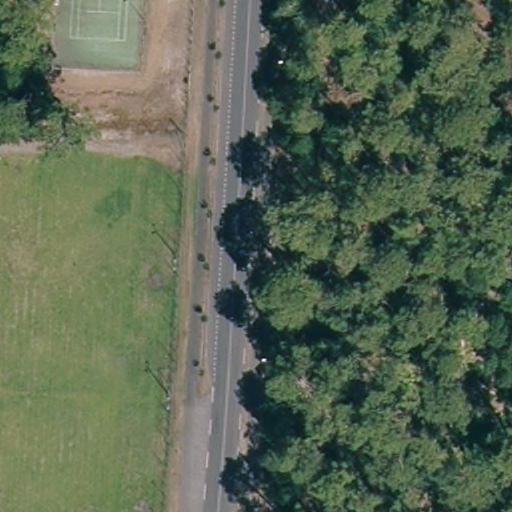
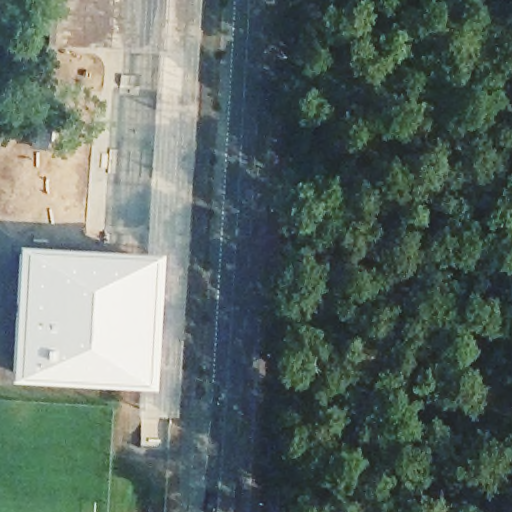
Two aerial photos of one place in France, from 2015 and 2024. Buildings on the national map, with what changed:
unchanged [(0,89),(0,76),(4,88),(0,89)]
new [(7,381),(14,246),(159,254),(151,390),(7,381)]

